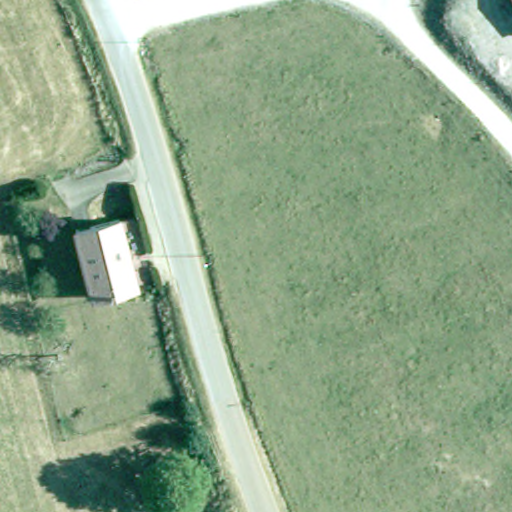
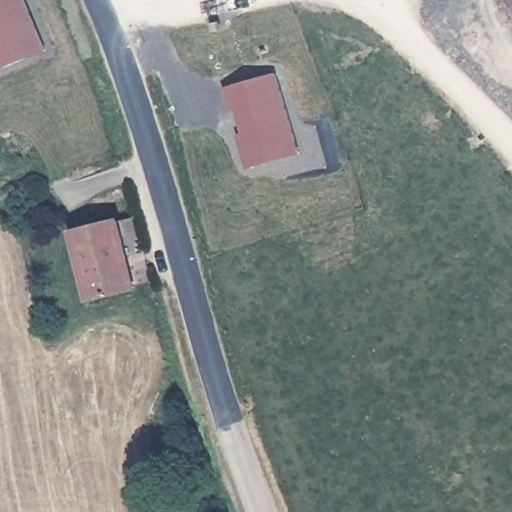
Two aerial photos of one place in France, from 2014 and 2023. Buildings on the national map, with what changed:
new [(0,70),(0,0),(27,0),(46,50),(0,70)]
new [(244,133),(238,110),(232,112),(225,88),(277,73),(300,153),(248,168),(239,133),(244,133)]
unchanged [(75,230),(118,219),(136,287),(93,298),(75,230)]

